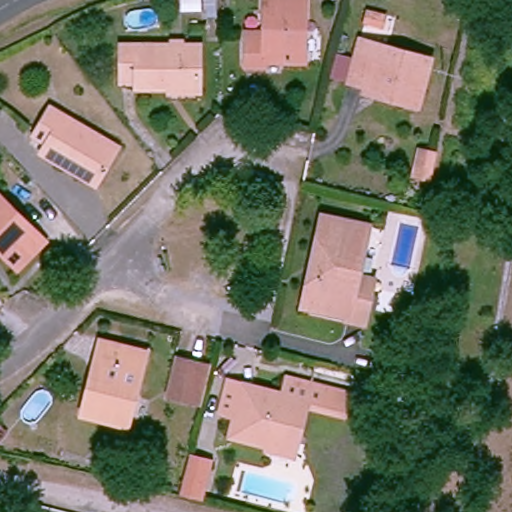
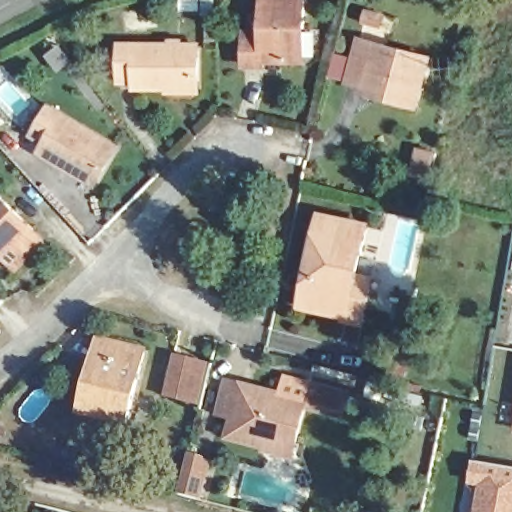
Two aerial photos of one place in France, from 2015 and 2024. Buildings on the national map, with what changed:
unchanged [(270,61),(268,68),(250,68),(250,37),(266,36),(265,0),(309,0),(310,27),(310,60),(305,60),(270,61)]
unchanged [(366,87),(351,84),(362,41),(433,58),(420,109),(400,105),(365,97),(366,87)]
unchanged [(166,96),(166,87),(137,87),(135,84),(122,84),(121,43),(195,42),(197,86),(197,96),(166,96)]
unchanged [(66,168),(41,151),(47,141),(34,131),(50,105),(115,146),(95,177),(90,183),(66,168)]
unchanged [(419,171),(404,169),(408,143),(424,145),(419,171)]
unchanged [(20,273),(0,254),(0,195),(47,244),(20,273)]
unchanged [(298,302),(317,220),(365,230),(380,233),(370,279),(360,323),(342,319),(296,311),(298,302)]
unchanged [(131,426),(85,417),(90,398),(102,342),(110,344),(148,354),(131,426)]
unchanged [(205,400),(168,393),(175,360),(212,368),(205,400)]
unchanged [(230,431),(232,419),(218,415),(222,393),(225,384),(240,387),(280,397),(283,379),(345,392),(341,411),(305,402),(293,455),(271,451),(228,441),(230,431)]
unchanged [(180,454),(200,459),(191,494),(171,490),(180,454)]
new [(480,484),(469,481),(474,459),(512,466),(512,512),(475,512),(480,484)]

